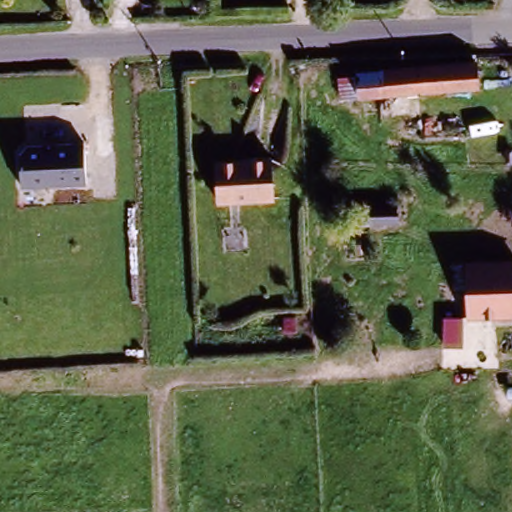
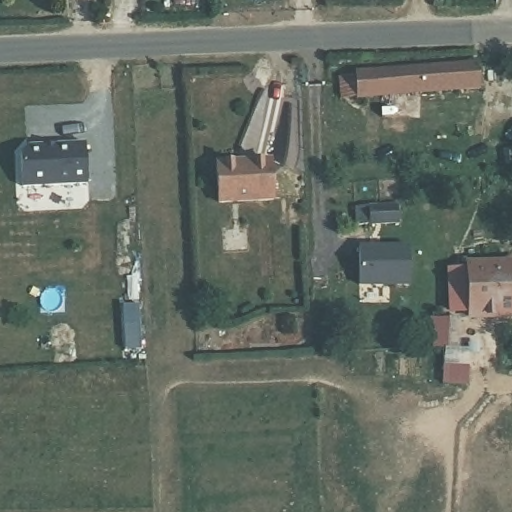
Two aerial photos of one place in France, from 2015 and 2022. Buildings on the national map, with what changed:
unchanged [(356,73),(355,69),(475,64),(476,89),(355,94),(355,92),(338,93),(337,73),(356,73)]
unchanged [(85,143),(83,184),(22,185),(22,145),(85,143)]
unchanged [(270,200),(217,204),(215,165),(268,161),(270,200)]
unchanged [(399,206),(398,218),(356,220),(357,208),(399,206)]
new [(360,285),(358,246),(409,246),(408,287),(360,285)]
unchanged [(465,322),(461,261),(512,259),(512,318),(465,322)]
new [(450,323),(448,350),(431,350),(430,322),(450,323)]

